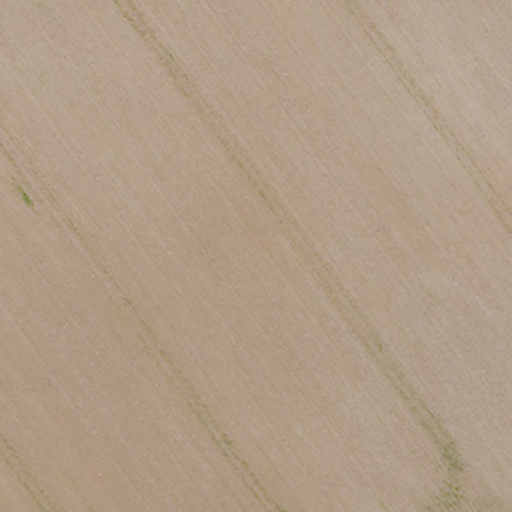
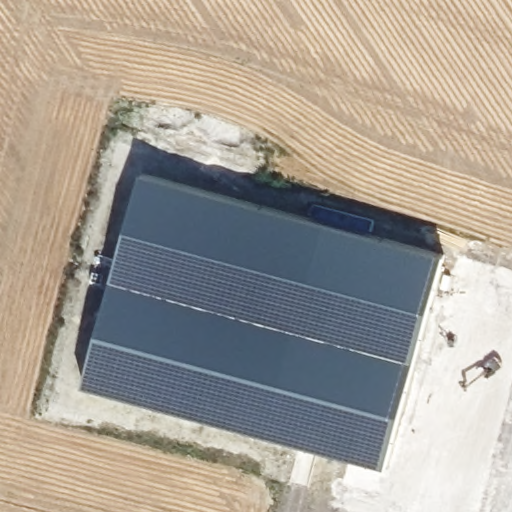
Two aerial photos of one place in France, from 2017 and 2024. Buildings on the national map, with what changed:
new [(402,407),(402,408),(387,464),(85,379),(143,169),(368,231),(445,253),(413,370),(402,407)]

